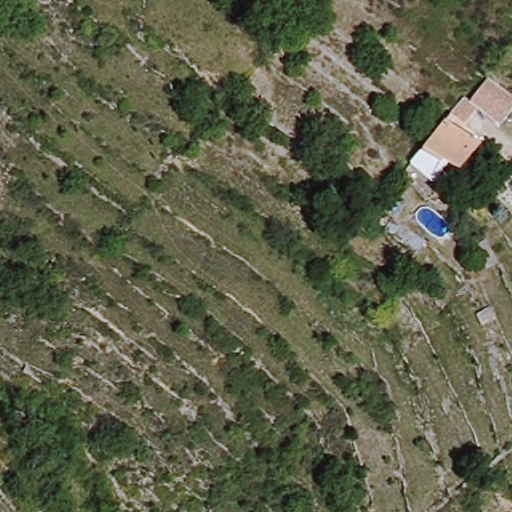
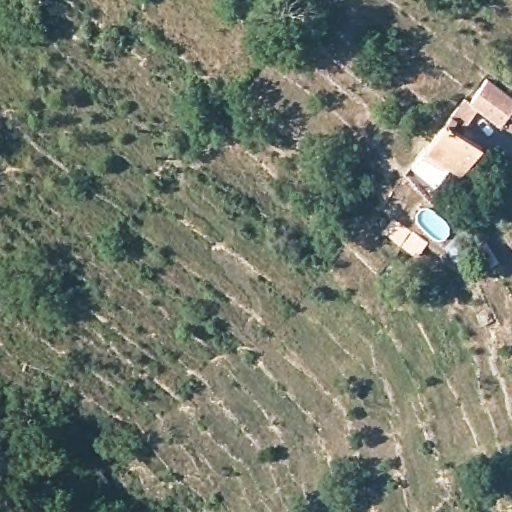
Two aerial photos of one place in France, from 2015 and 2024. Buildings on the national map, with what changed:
unchanged [(512,98),(512,122),(511,124),(499,125),(478,112),(473,120),(465,117),(460,124),(450,117),(460,99),(470,104),(487,81),(512,98)]
unchanged [(464,173),(448,164),(435,185),(408,161),(447,125),(482,149),(464,173)]

